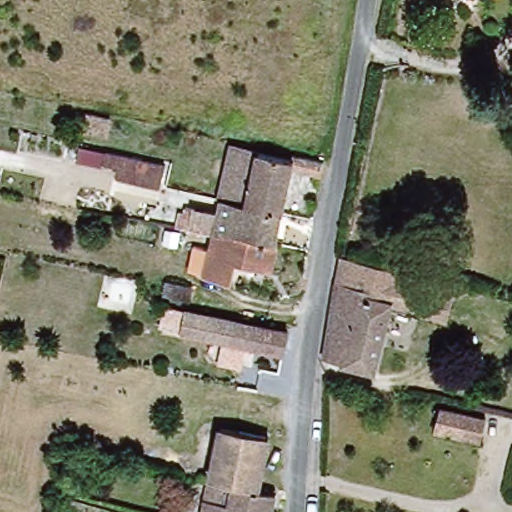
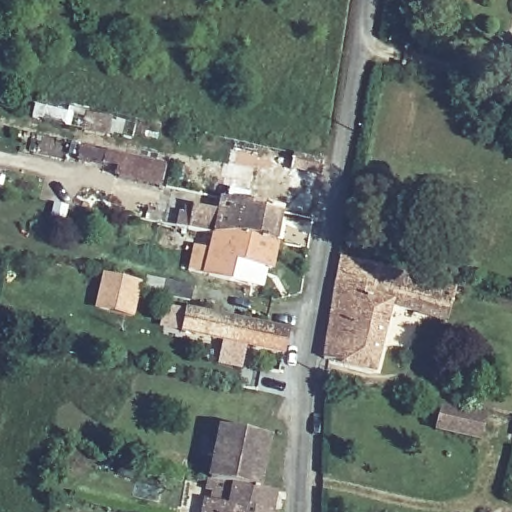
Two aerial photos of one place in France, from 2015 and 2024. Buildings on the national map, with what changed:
unchanged [(213,208),(230,142),(293,160),(294,154),(322,160),(320,175),(296,170),(285,217),(221,203),(213,236),(187,231),(193,205),(213,208)]
unchanged [(159,189),(102,175),(107,150),(164,164),(159,189)]
unchanged [(277,249),(213,237),(221,203),(285,217),(277,249)]
unchanged [(277,249),(273,267),(233,261),(230,281),(205,277),(213,237),(277,249)]
unchanged [(372,377),(323,368),(344,257),(427,276),(452,282),(443,314),(420,307),(388,301),(372,377)]
new [(102,273),(142,282),(134,317),(94,310),(102,273)]
unchanged [(184,330),(190,308),(285,335),(278,355),(184,330)]
unchanged [(217,442),(212,441),(215,429),(220,431),(222,425),(266,434),(254,491),(210,479),(217,442)]
unchanged [(482,438),(475,459),(431,447),(437,425),(482,438)]
unchanged [(210,479),(254,491),(271,495),(264,512),(200,512),(210,479)]

